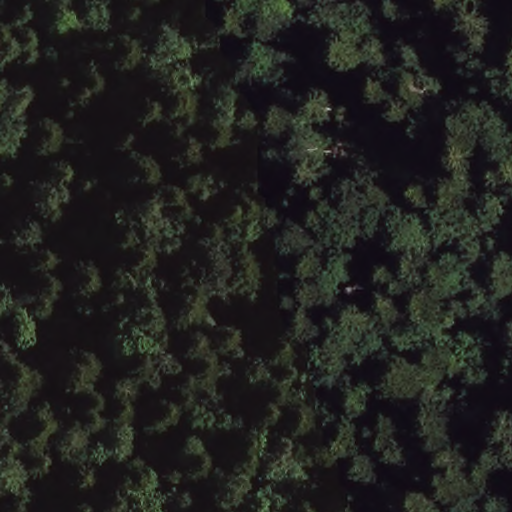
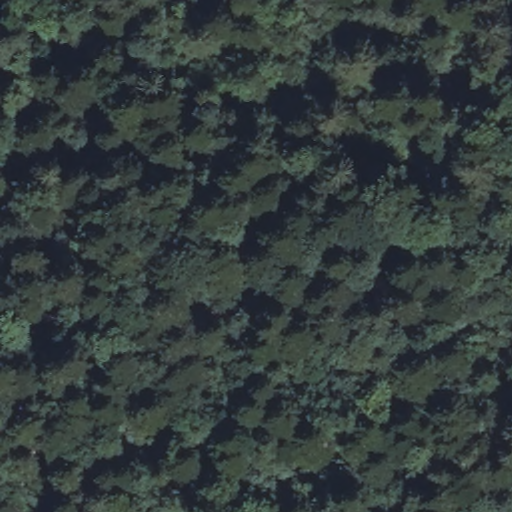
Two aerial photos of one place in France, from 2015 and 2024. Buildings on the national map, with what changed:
[]

